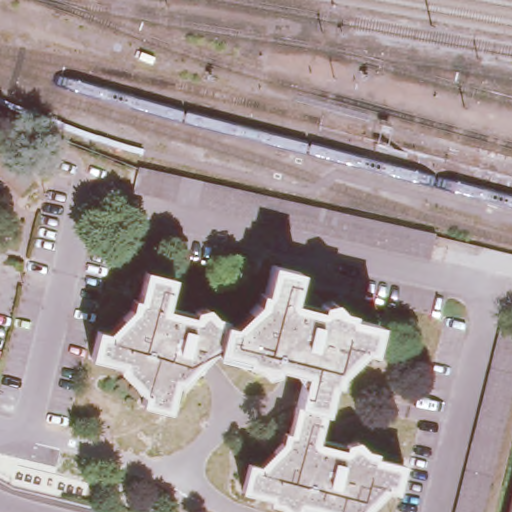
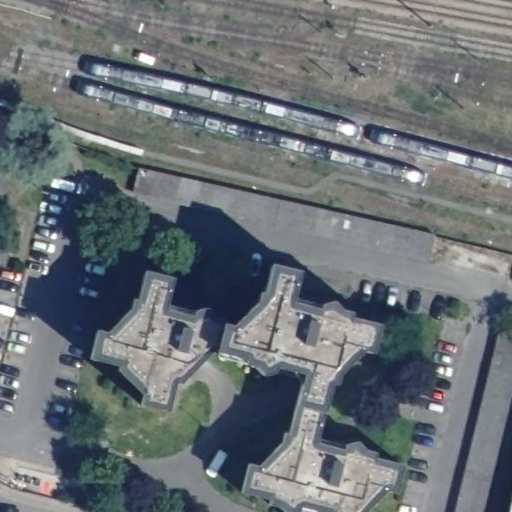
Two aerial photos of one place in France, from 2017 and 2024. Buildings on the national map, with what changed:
unchanged [(201,180),(195,204),(130,188),(138,159),(158,167),(201,180)]
unchanged [(430,232),(424,259),(195,204),(201,180),(430,232)]
unchanged [(150,397),(172,302),(197,309),(198,304),(212,301),(219,309),(230,312),(229,315),(240,319),(270,285),(277,259),(304,265),(300,288),(326,295),(335,291),(343,300),(357,303),(355,308),(380,315),(372,344),(363,342),(340,365),(337,379),(332,378),(317,434),(342,440),(342,437),(356,435),(366,443),(377,446),(377,451),(403,458),(395,488),(387,487),(361,512),(323,512),(302,506),(297,510),(289,512),(285,512),(282,507),(267,503),(268,497),(240,490),(247,465),(258,467),(287,429),(300,380),(295,366),(282,362),(280,367),(269,372),(258,361),(218,351),(220,347),(215,345),(187,377),(181,376),(175,403),(150,397)]
unchanged [(150,397),(142,395),(145,390),(120,366),(122,360),(95,352),(101,325),(108,326),(132,302),(135,288),(142,288),(148,261),(176,268),(169,300),(172,302),(150,397)]
unchanged [(512,334),(512,381),(481,512),(454,512),(495,330),(512,334)]
unchanged [(512,497),(512,512),(508,512),(512,497)]

